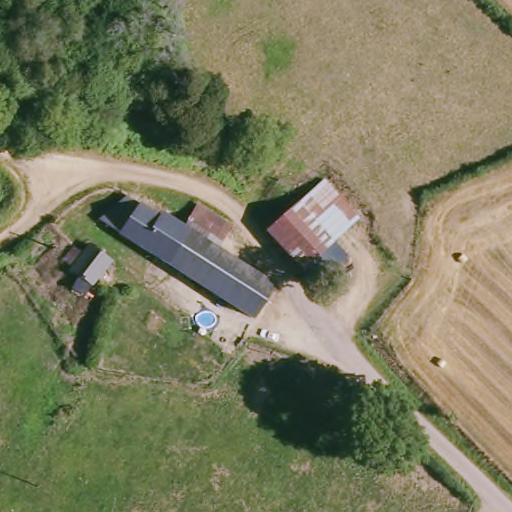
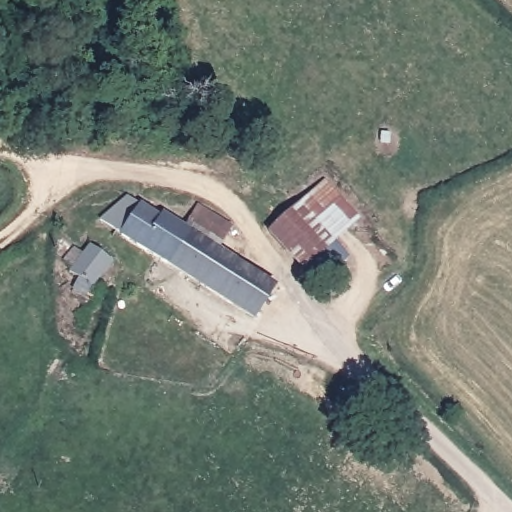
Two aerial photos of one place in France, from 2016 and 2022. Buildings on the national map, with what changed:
unchanged [(272,231),(328,180),(366,219),(304,273),(272,231)]
unchanged [(159,216),(165,210),(182,220),(197,203),(235,229),(217,247),(262,278),(276,288),(254,321),(113,227),(124,212),(137,202),(159,216)]
unchanged [(103,250),(114,259),(90,293),(55,281),(80,236),(103,250)]

